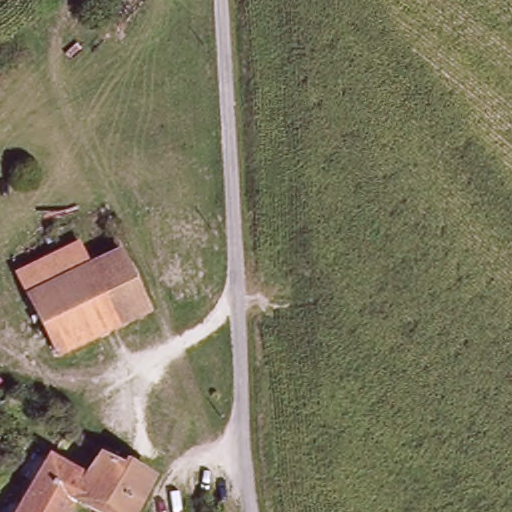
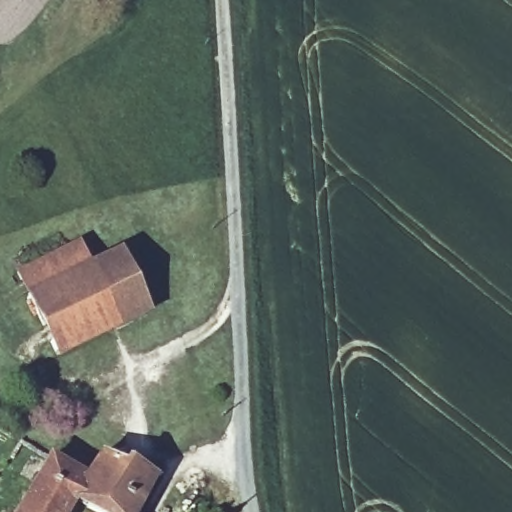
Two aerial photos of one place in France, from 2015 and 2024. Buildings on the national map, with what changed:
unchanged [(61,366),(20,281),(79,251),(89,270),(115,258),(147,322),(61,366)]
unchanged [(76,512),(25,512),(52,460),(88,483),(78,506),(76,512)]
unchanged [(124,474),(127,467),(159,481),(144,512),(90,512),(78,506),(88,483),(100,463),(124,474)]

